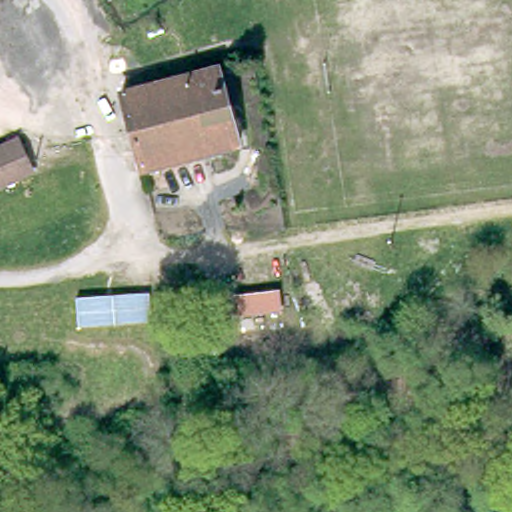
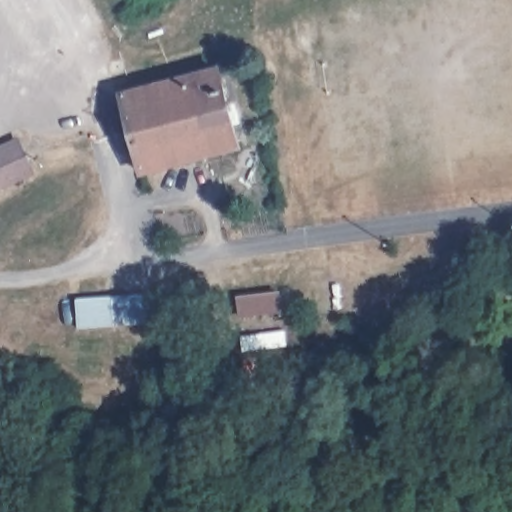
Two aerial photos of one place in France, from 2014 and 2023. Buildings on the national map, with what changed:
unchanged [(149,82),(150,84),(217,65),(240,141),(144,169),(120,90),(149,82)]
unchanged [(28,166),(0,180),(0,140),(13,134),(28,166)]
unchanged [(278,287),(283,311),(227,316),(226,292),(278,287)]
unchanged [(151,292),(153,325),(78,330),(75,296),(151,292)]

